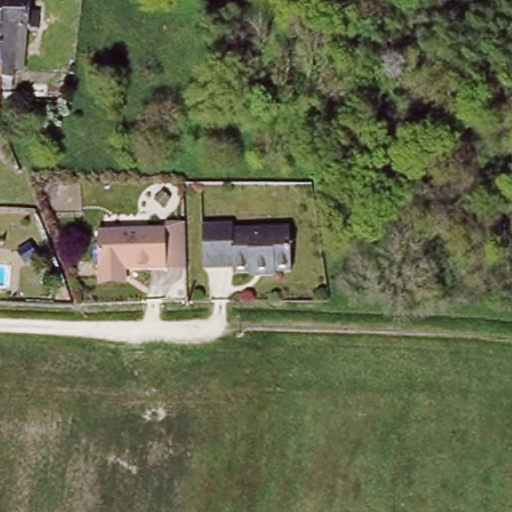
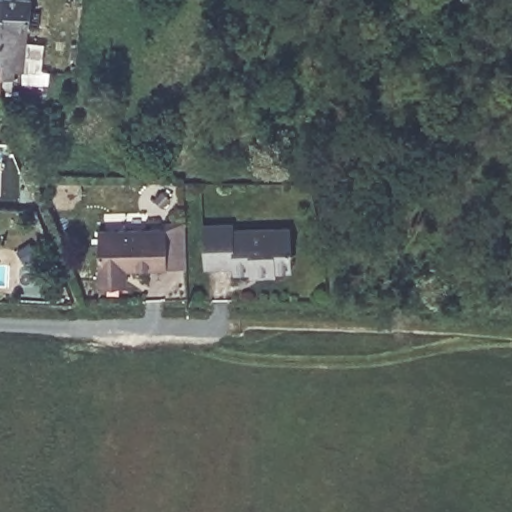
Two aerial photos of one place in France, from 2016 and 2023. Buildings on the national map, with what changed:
unchanged [(19,29),(17,81),(1,78),(0,89),(0,0),(34,0),(34,29),(19,29)]
unchanged [(99,225),(165,227),(165,219),(185,220),(185,263),(163,263),(121,262),(121,272),(97,271),(99,225)]
unchanged [(249,270),(230,270),(230,265),(200,265),(201,223),(233,223),(233,229),(291,229),(290,272),(275,272),(275,275),(258,275),(249,275),(249,270)]

